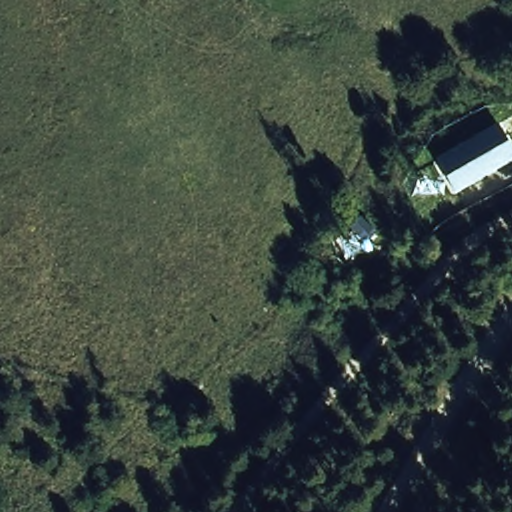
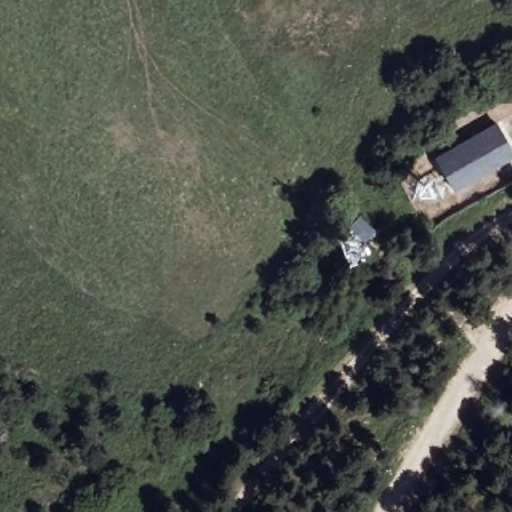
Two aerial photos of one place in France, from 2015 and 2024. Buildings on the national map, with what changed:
unchanged [(512,158),(512,159),(448,194),(426,154),(490,118),(512,158)]

